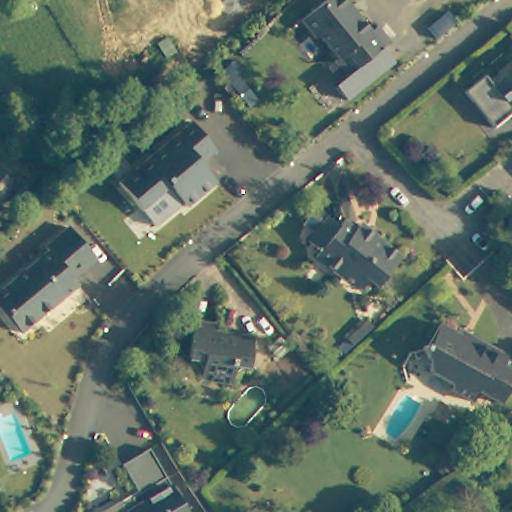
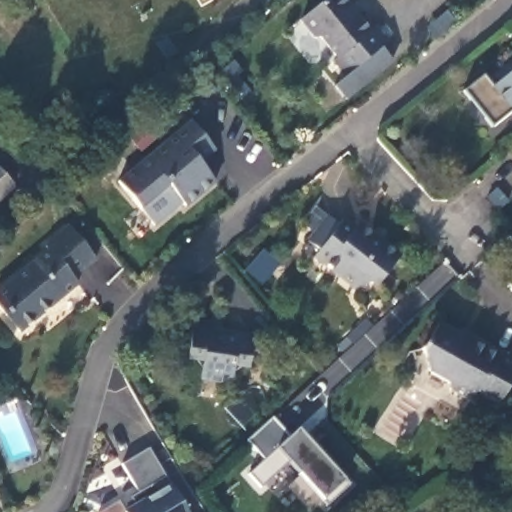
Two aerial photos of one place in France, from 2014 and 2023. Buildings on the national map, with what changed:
unchanged [(331,43),(316,24),(310,24),(295,5),(301,0),(348,0),(350,2),(351,1),(365,17),(370,12),(383,27),(375,34),(340,62),(327,46),(331,43)]
unchanged [(386,47),(340,85),(328,72),(340,62),(375,34),(386,47)]
unchanged [(510,112),(490,88),(512,71),(512,111),(510,112)]
unchanged [(464,93),(483,77),(490,88),(510,112),(490,127),(464,93)]
unchanged [(213,182),(184,207),(180,203),(152,227),(115,182),(189,122),(212,151),(197,163),(213,182)]
unchanged [(0,195),(0,166),(14,182),(0,195)]
unchanged [(339,275),(315,256),(320,251),(308,242),(327,217),(340,226),(344,220),(355,229),(358,225),(400,257),(376,287),(371,282),(355,288),(339,275)]
unchanged [(0,309),(0,290),(26,268),(47,251),(44,247),(67,227),(95,260),(72,279),(76,285),(60,299),(55,303),(20,332),(0,309)]
unchanged [(475,385),(469,396),(450,386),(448,377),(429,367),(423,346),(421,345),(423,341),(425,342),(438,319),(490,347),(492,342),(512,353),(512,374),(499,397),(475,385)]
unchanged [(214,328),(252,333),(249,361),(234,358),(231,376),(200,372),(202,355),(187,353),(191,321),(215,324),(214,328)]
new [(322,499),(288,460),(261,487),(249,472),(265,458),(248,441),(272,418),(290,438),(299,431),(342,480),(322,499)]
unchanged [(122,463),(150,447),(187,512),(99,512),(119,500),(137,490),(122,463)]

